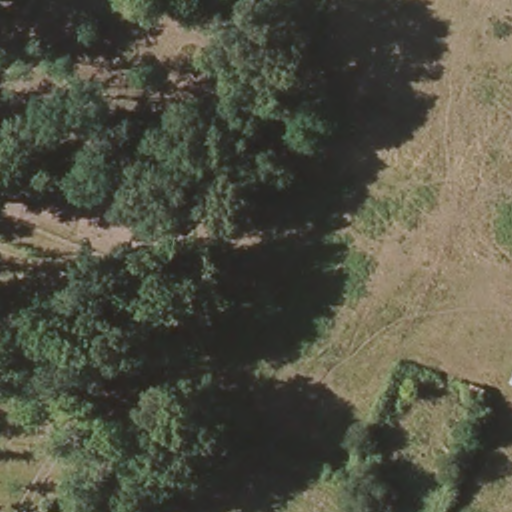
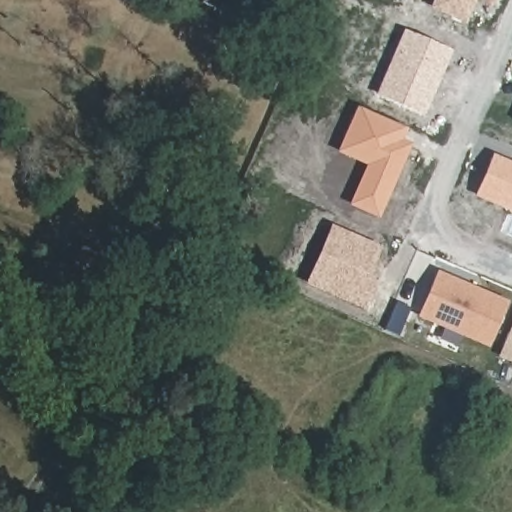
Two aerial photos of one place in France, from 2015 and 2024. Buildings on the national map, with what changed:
new [(433,0),(476,0),(465,25),(430,9),(433,0)]
new [(376,95),(404,30),(452,51),(423,116),(376,95)]
new [(379,219),(349,206),(365,166),(337,154),(357,106),(408,129),(403,139),(412,145),(379,219)]
new [(492,154),(512,162),(512,213),(473,197),(492,154)]
new [(368,278),(378,282),(365,311),(305,285),(332,225),(382,247),(368,278)]
new [(508,302),(488,348),(417,317),(437,271),(508,302)]
new [(512,324),(512,364),(498,358),(512,324)]
unchanged [(488,401),(478,397),(482,387),(492,391),(488,401)]

